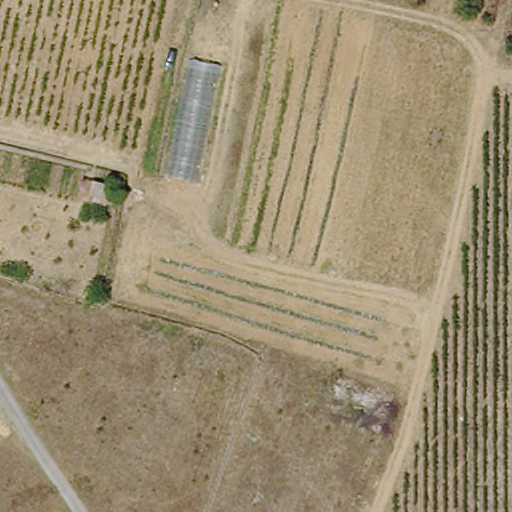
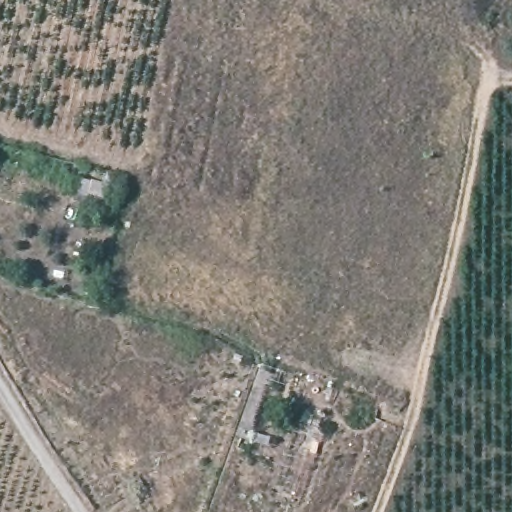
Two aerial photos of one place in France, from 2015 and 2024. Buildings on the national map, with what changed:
demolished [(223,50),(194,188),(155,178),(183,44),(223,50)]

